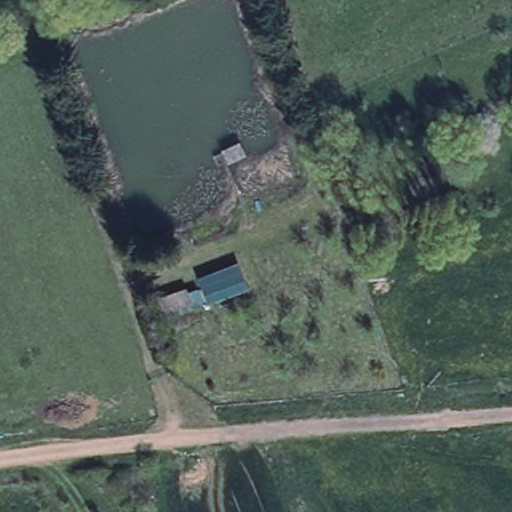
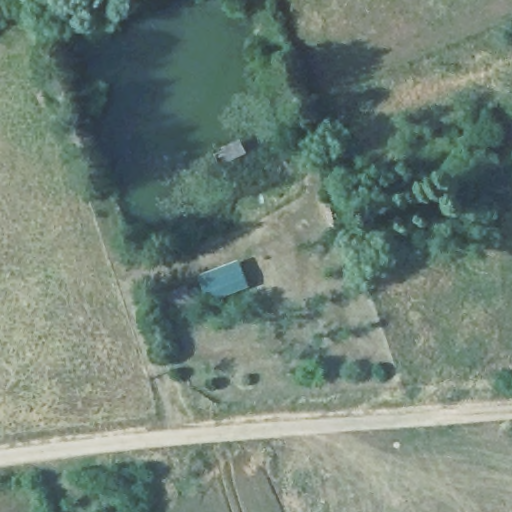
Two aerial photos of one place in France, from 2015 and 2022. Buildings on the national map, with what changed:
unchanged [(155,296),(187,287),(191,307),(162,320),(155,296)]

